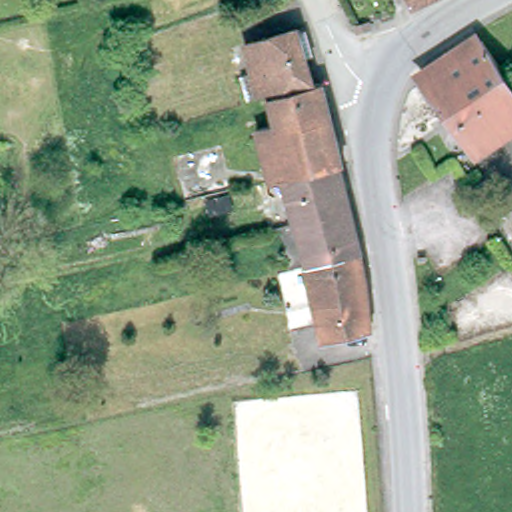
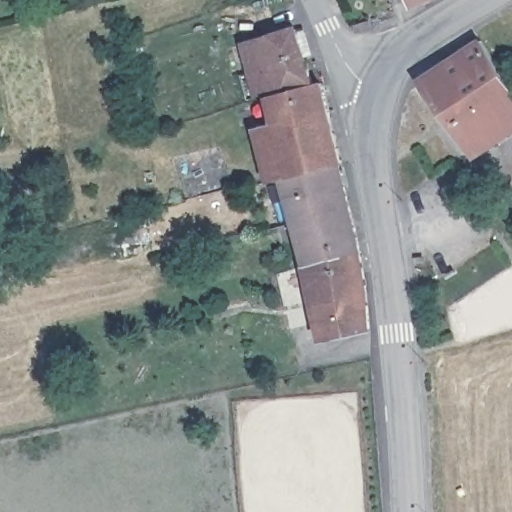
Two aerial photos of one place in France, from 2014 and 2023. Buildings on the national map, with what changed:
unchanged [(408,0),(434,0),(413,10),(408,0)]
unchanged [(242,93),(235,69),(247,65),(239,39),(292,24),(298,21),(305,45),(298,47),(307,76),(242,93)]
unchanged [(474,156),(422,82),(416,74),(425,66),(450,49),(476,31),(482,40),(512,83),(512,131),(474,156)]
unchanged [(142,49),(119,56),(117,45),(138,38),(142,49)]
unchanged [(337,159),(333,159),(277,172),(265,175),(252,122),(270,117),(263,92),(263,90),(318,76),(319,78),(337,159)]
unchanged [(352,230),(355,246),(300,260),(277,172),(333,159),(352,230)]
unchanged [(361,273),(367,322),(318,331),(300,260),(355,246),(361,273)]

